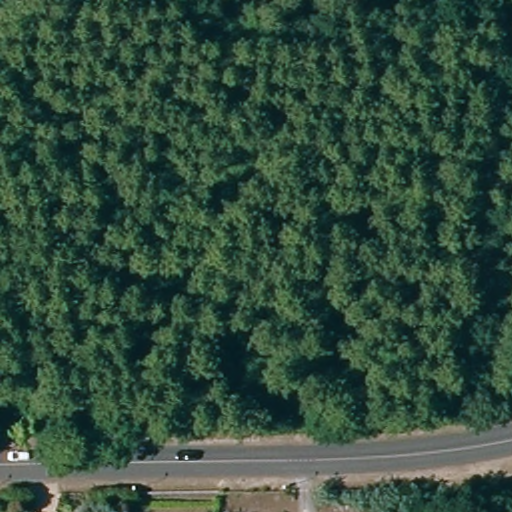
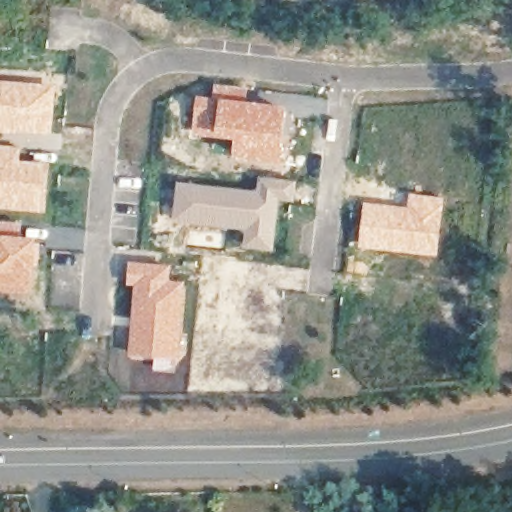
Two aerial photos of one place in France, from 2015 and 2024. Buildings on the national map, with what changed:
new [(51,135),(0,132),(0,80),(55,84),(51,135)]
new [(196,95),(210,97),(212,83),(249,89),(247,102),(287,107),(280,165),(231,159),(233,142),(190,136),(196,95)]
new [(19,161),(50,163),(45,214),(0,209),(0,144),(20,146),(19,161)]
new [(176,181),(256,191),(258,176),(297,181),(294,204),(280,202),(273,253),(240,249),(243,232),(206,230),(170,224),(176,181)]
new [(363,202),(406,206),(408,192),(444,198),(437,257),(357,248),(363,202)]
new [(21,237),(40,239),(31,297),(0,293),(0,221),(22,222),(21,237)]
new [(128,261),(171,265),(170,279),(186,281),(180,362),(127,357),(132,287),(126,286),(128,261)]

